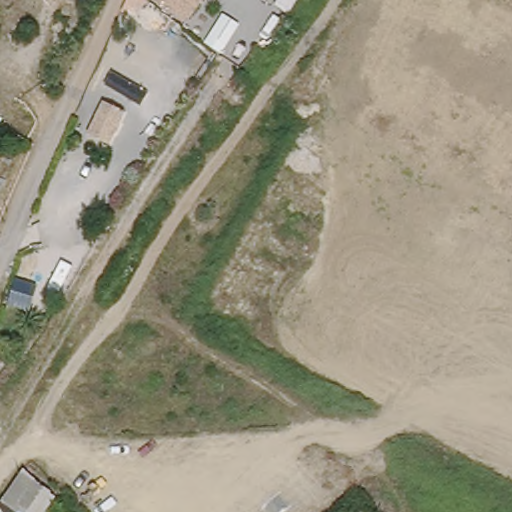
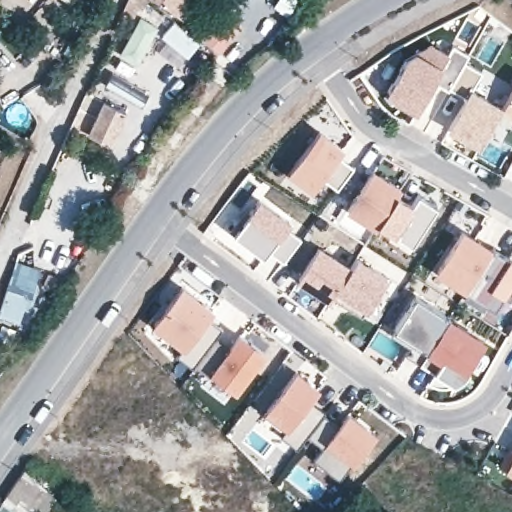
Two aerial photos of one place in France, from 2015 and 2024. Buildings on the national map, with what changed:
unchanged [(153,0),(197,0),(181,21),(153,0)]
new [(433,81),(416,111),(396,100),(388,91),(409,50),(431,41),(452,45),(469,51),(463,64),(450,87),(449,90),(433,81)]
new [(463,64),(465,61),(482,71),(472,90),(502,107),(481,145),(449,127),(467,97),(450,87),(463,64)]
new [(502,107),(512,87),(512,114),(502,107)]
new [(105,101),(124,111),(109,143),(89,134),(105,101)]
new [(320,131),(343,149),(338,155),(354,167),(338,190),(321,177),(311,190),(289,173),(320,131)]
new [(350,209),(372,175),(375,170),(381,175),(401,187),(377,226),(350,209)]
new [(411,205),(418,194),(437,205),(412,245),(379,223),(396,195),(411,205)]
new [(259,199),(290,222),(286,226),(301,238),(283,262),(268,250),(264,256),(233,234),(259,199)]
new [(468,288),(439,270),(464,231),(492,250),(468,288)]
new [(488,305),(466,291),(468,288),(492,250),(494,247),(509,256),(512,252),(512,292),(509,297),(502,292),(493,307),(488,305)]
new [(300,280),(319,249),(350,268),(330,299),(300,280)]
new [(389,277),(366,310),(364,308),(361,314),(360,313),(333,295),(336,288),(350,268),(358,255),(389,277)]
new [(216,338),(196,365),(193,368),(177,356),(184,347),(155,325),(183,287),(213,310),(208,317),(223,329),(216,338)]
new [(420,363),(406,354),(414,342),(394,330),(417,295),(450,316),(448,319),(420,363)]
new [(484,341),(466,369),(470,371),(464,378),(458,383),(454,385),(420,363),(448,319),(484,341)]
new [(414,342),(411,346),(392,334),(394,330),(414,342)]
new [(230,349),(241,334),(265,351),(237,389),(213,372),(211,376),(196,365),(216,338),(230,349)]
new [(440,386),(429,382),(435,372),(454,385),(450,386),(440,386)]
new [(340,426),(349,414),(376,434),(341,480),(316,460),(325,448),(309,435),(324,415),(340,426)]
new [(502,465),(510,450),(512,451),(512,471),(502,465)]
unchanged [(40,512),(33,508),(30,512),(0,512),(0,505),(29,463),(58,493),(46,512),(40,512)]

